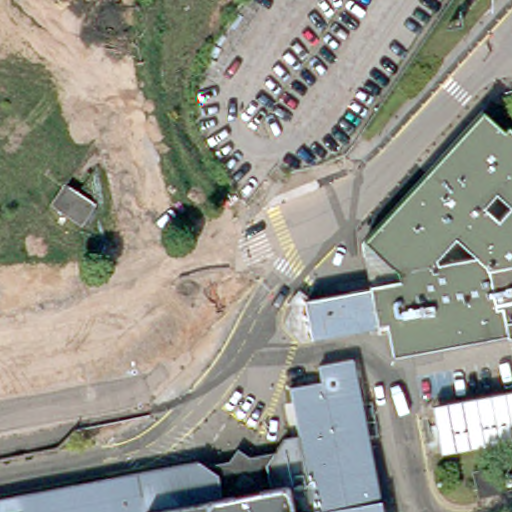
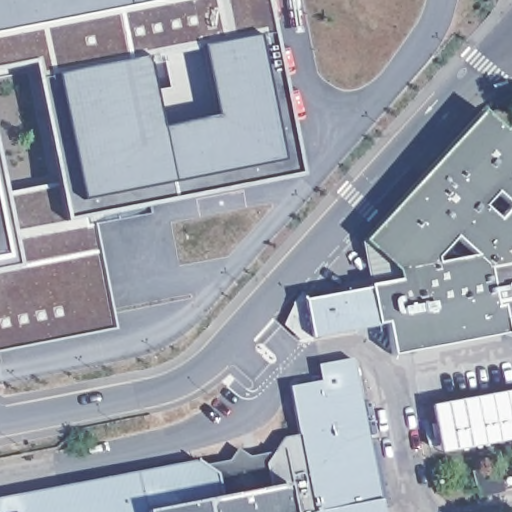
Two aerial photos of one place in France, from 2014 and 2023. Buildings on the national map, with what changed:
new [(0,32),(0,0),(167,0),(0,32)]
new [(295,176),(82,217),(64,220),(57,186),(34,61),(0,68),(0,32),(167,0),(262,0),(295,176)]
new [(151,93),(159,130),(213,119),(201,48),(252,38),(277,161),(78,201),(56,77),(144,59),(151,93)]
new [(201,48),(213,119),(159,130),(151,93),(168,90),(161,55),(201,48)]
unchanged [(503,301),(506,322),(396,345),(393,323),(323,335),(321,327),(310,329),(300,322),(306,311),(318,309),(315,291),(405,277),(362,236),(483,106),(512,132),(512,299),(503,301)]
new [(17,268),(0,272),(0,181),(3,197),(17,268)]
new [(93,226),(113,330),(0,351),(0,272),(17,268),(3,197),(22,194),(57,186),(64,220),(82,217),(85,228),(93,226)]
unchanged [(321,383),(318,366),(351,360),(366,445),(380,512),(316,512),(290,388),(321,383)]
unchanged [(431,453),(424,401),(512,384),(512,439),(431,453)]
unchanged [(153,473),(203,464),(208,468),(231,463),(240,451),(252,459),(277,454),(268,465),(270,469),(273,490),(288,487),(293,512),(0,512),(0,502),(56,492),(153,473)]
unchanged [(503,486),(480,493),(472,469),(496,463),(503,486)]

